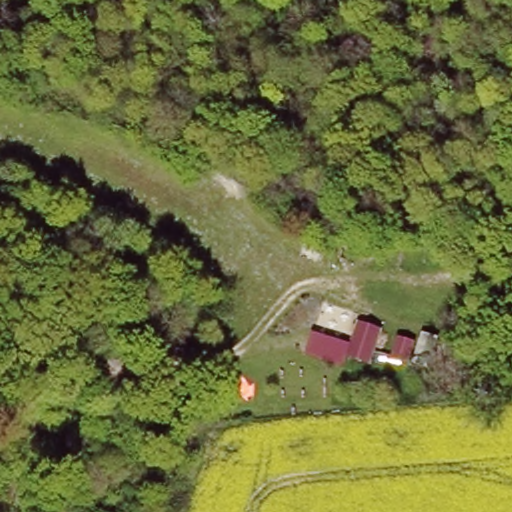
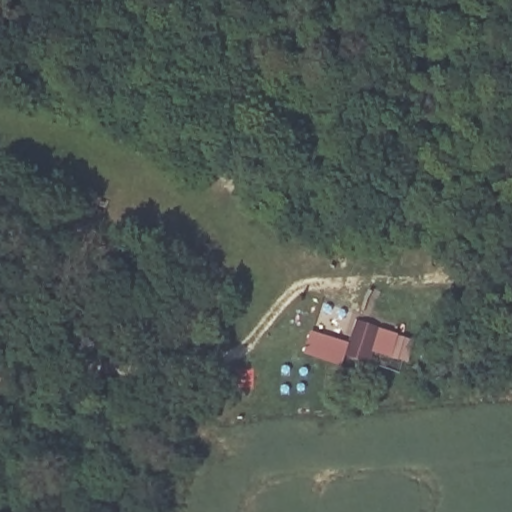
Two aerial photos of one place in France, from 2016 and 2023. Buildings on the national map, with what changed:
unchanged [(322,261),(317,278),(302,274),(307,257),(322,261)]
unchanged [(359,321),(382,329),(370,364),(347,356),(344,366),(306,354),(312,335),(350,347),(359,321)]

